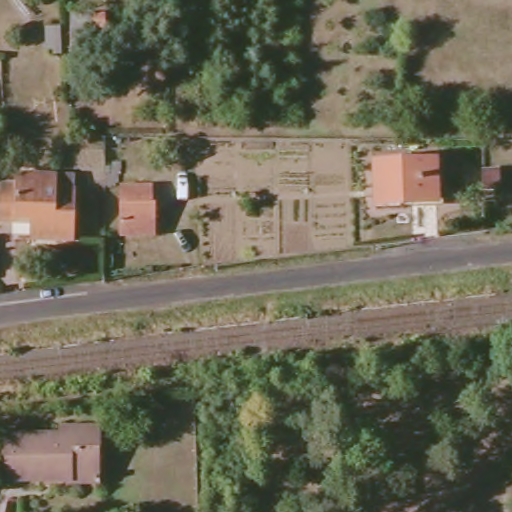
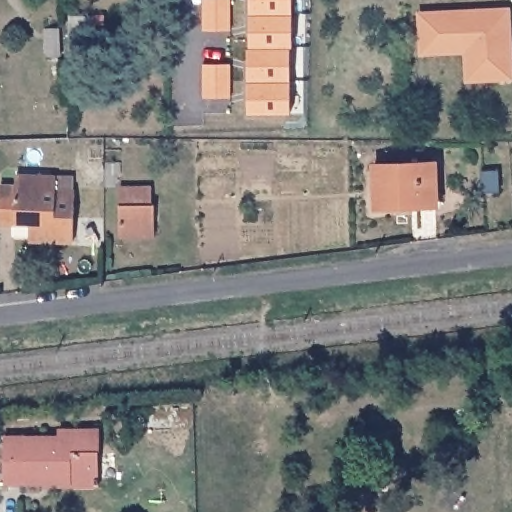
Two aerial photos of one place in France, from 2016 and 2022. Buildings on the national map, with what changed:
new [(229,0),(229,14),(229,30),(202,30),(202,14),(202,0),(229,0)]
new [(293,0),(293,14),(247,14),(247,0),(293,0)]
new [(510,5),(512,38),(512,79),(463,82),(462,53),(418,55),(415,10),(510,5)]
unchanged [(71,52),(70,15),(92,13),(94,51),(71,52)]
new [(247,14),(293,14),(293,47),(290,47),(251,47),(251,35),(247,35),(247,14)]
new [(245,59),(248,59),(248,47),(251,47),(290,47),(291,80),(245,80),(245,59)]
new [(202,63),(229,63),(229,80),(229,96),(202,96),(202,80),(202,63)]
new [(245,80),(291,80),(291,113),(248,112),(248,101),(245,101),(245,80)]
unchanged [(438,201),(415,203),(415,206),(379,207),(378,180),(378,165),(435,161),(437,180),(438,201)]
unchanged [(500,170),(500,190),(482,190),(482,181),(482,171),(493,171),(500,170)]
unchanged [(39,243),(40,226),(0,224),(3,188),(18,189),(19,177),(60,180),(58,194),(77,195),(75,245),(39,243)]
unchanged [(122,220),(123,210),(126,187),(158,191),(157,206),(160,206),(159,211),(157,224),(155,224),(153,236),(120,232),(122,220)]
unchanged [(68,473),(68,482),(2,482),(2,437),(56,438),(56,430),(96,430),(95,453),(90,453),(90,473),(68,473)]

